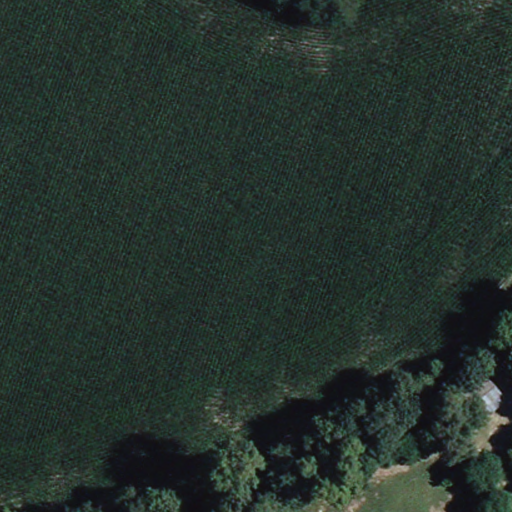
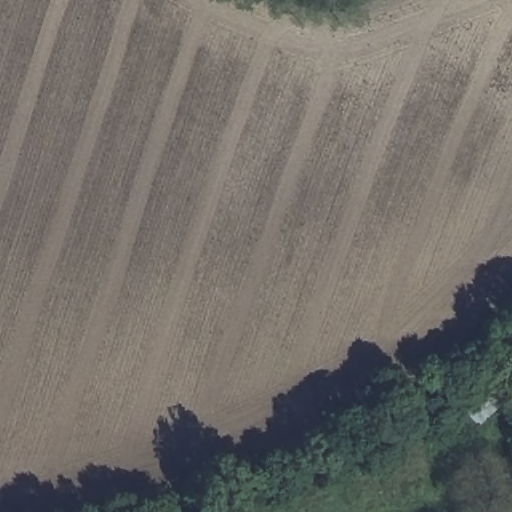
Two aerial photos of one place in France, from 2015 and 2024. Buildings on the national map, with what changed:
unchanged [(473,391),(512,378),(512,412),(483,422),(473,391)]

